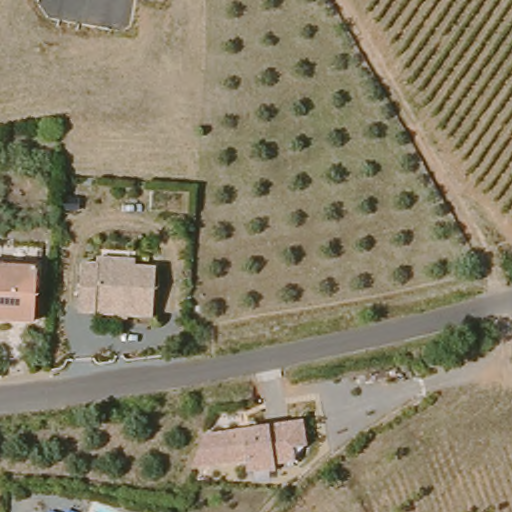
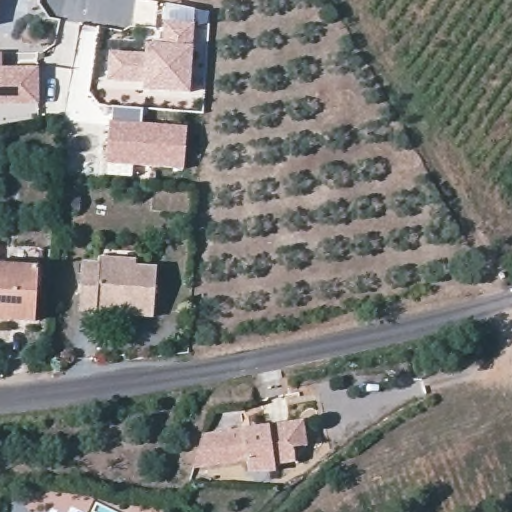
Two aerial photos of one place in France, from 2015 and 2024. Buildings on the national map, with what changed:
new [(109,46),(145,48),(146,43),(165,44),(167,22),(193,24),(189,89),(144,86),(144,78),(107,76),(109,46)]
new [(0,105),(0,53),(1,53),(2,66),(38,66),(38,105),(0,105)]
new [(184,169),(105,163),(109,120),(112,120),(112,108),(142,109),(142,123),(186,125),(184,169)]
unchanged [(85,260),(102,260),(104,254),(142,257),(142,264),(161,267),(157,317),(124,320),(122,314),(85,312),(85,260)]
unchanged [(2,317),(2,311),(0,311),(0,265),(35,267),(31,319),(2,317)]
unchanged [(207,432),(307,418),(310,444),(297,446),(297,460),(276,462),(278,469),(254,471),(250,462),(198,467),(207,432)]

